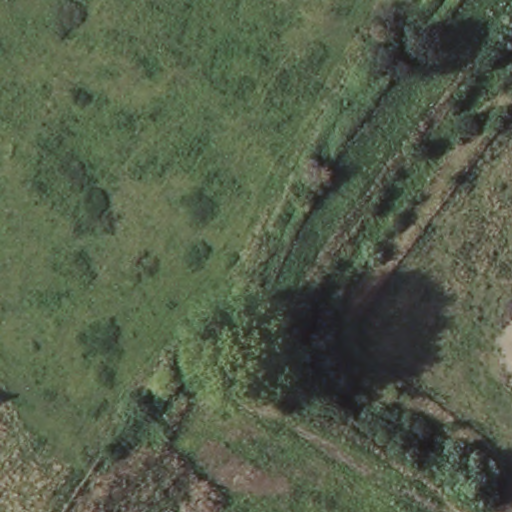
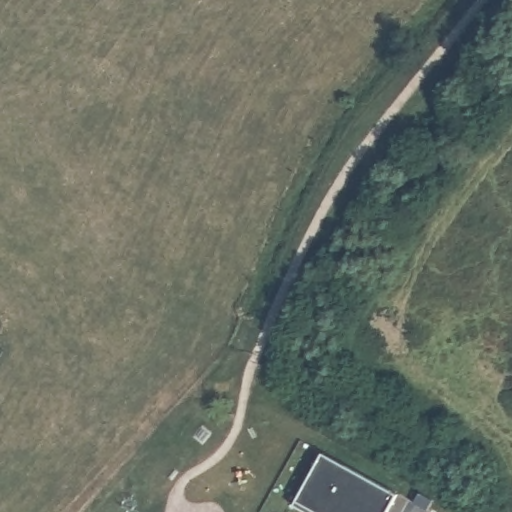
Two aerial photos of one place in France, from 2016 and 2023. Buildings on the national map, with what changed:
new [(383,512),(299,512),(289,507),(318,456),(392,495),(383,512)]

